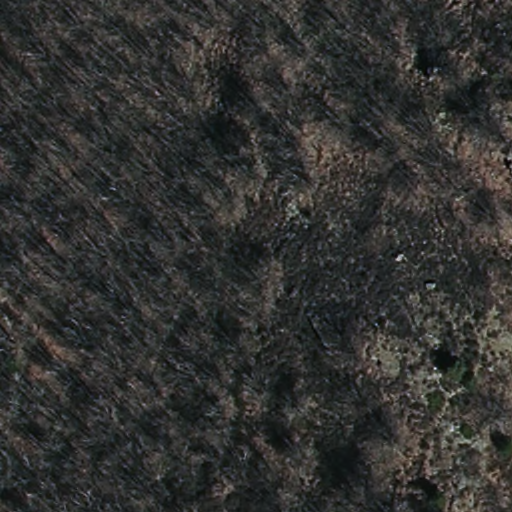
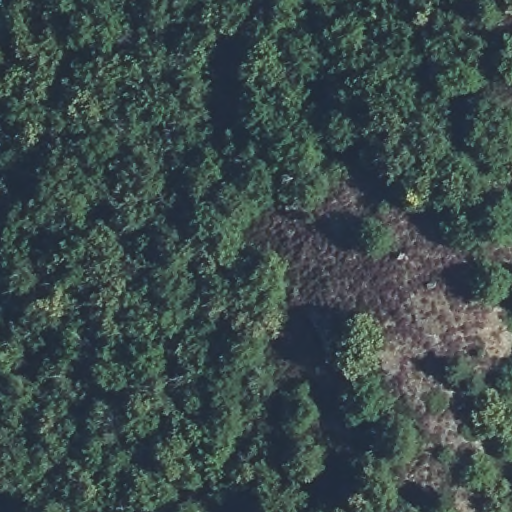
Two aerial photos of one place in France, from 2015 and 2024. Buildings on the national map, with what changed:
[]

